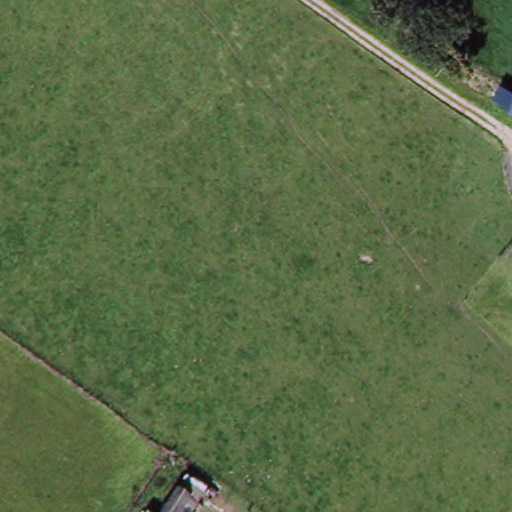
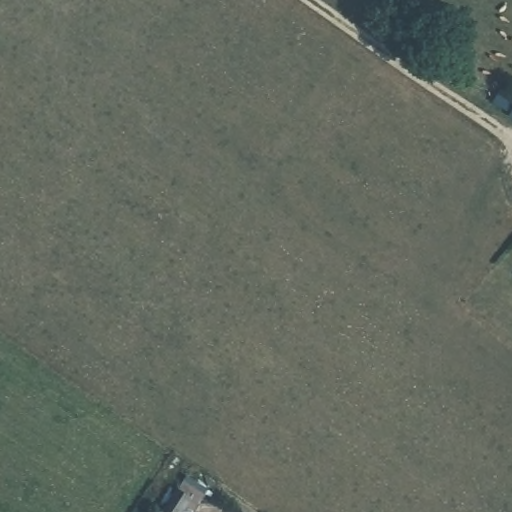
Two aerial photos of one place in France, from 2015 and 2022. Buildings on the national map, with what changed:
unchanged [(512,112),(461,83),(468,69),(512,94),(512,112)]
unchanged [(512,117),(512,119),(511,119),(512,117)]
unchanged [(194,504),(189,512),(172,512),(183,497),(194,504)]

